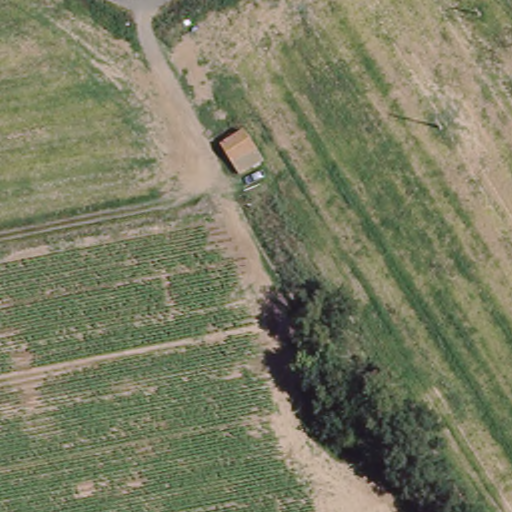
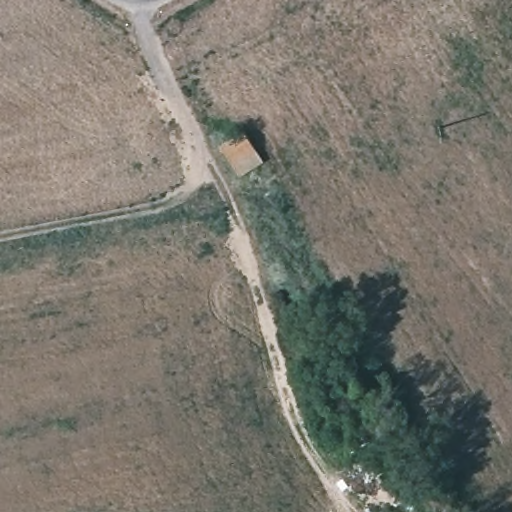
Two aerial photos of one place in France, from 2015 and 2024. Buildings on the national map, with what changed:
unchanged [(263,161),(251,169),(240,171),(226,144),(248,132),(263,161)]
unchanged [(344,380),(321,390),(313,375),(336,365),(344,380)]

